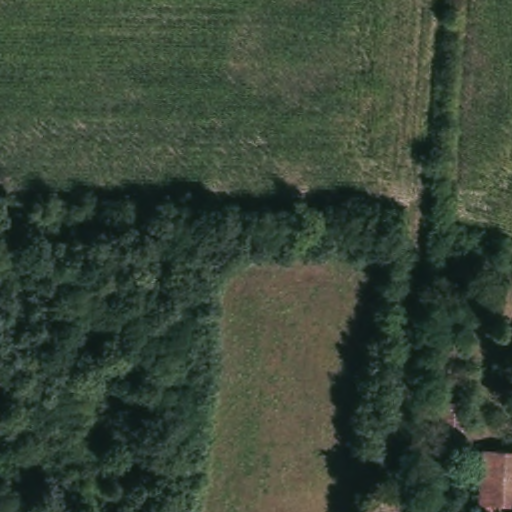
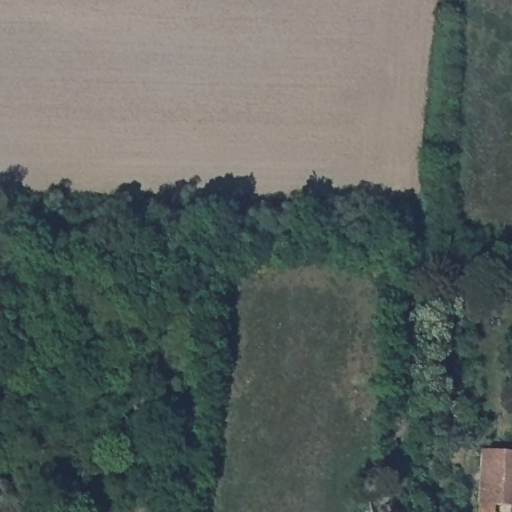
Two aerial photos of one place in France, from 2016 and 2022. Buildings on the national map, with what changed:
unchanged [(487,449),(512,451),(512,482),(484,478),(487,449)]
unchanged [(497,505),(497,512),(480,512),(484,478),(512,482),(512,507),(497,505)]

